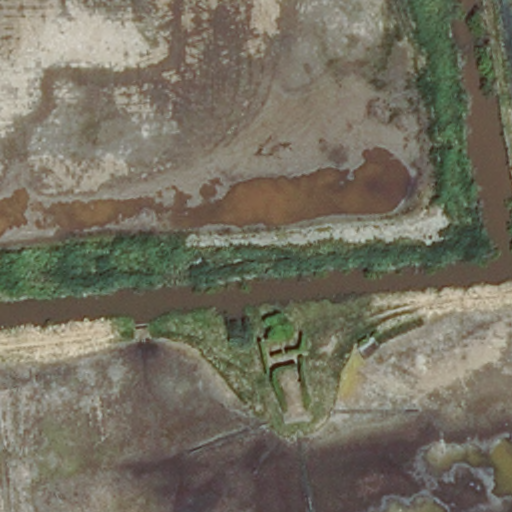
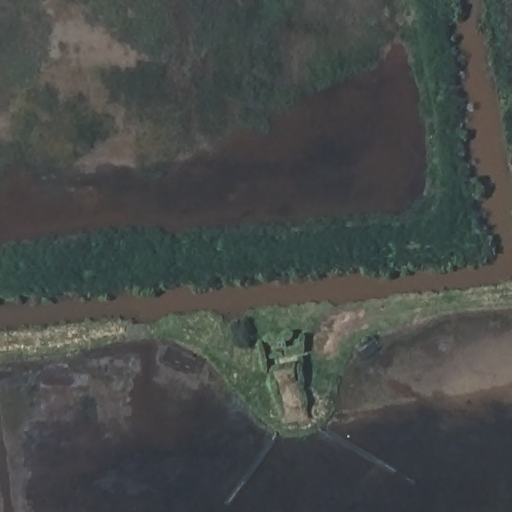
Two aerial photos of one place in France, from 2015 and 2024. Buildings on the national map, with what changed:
unchanged [(287,421),(278,385),(299,381),(307,419),(287,421)]

